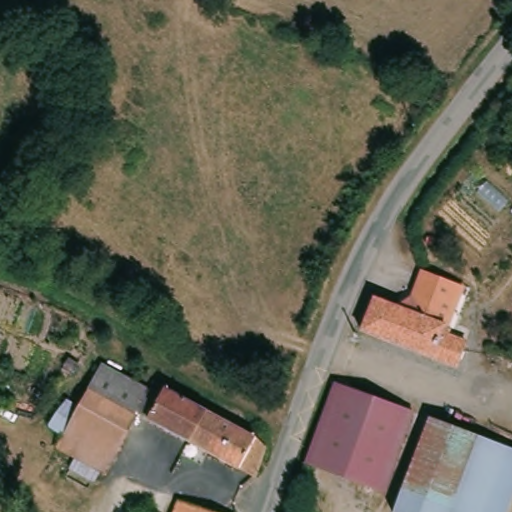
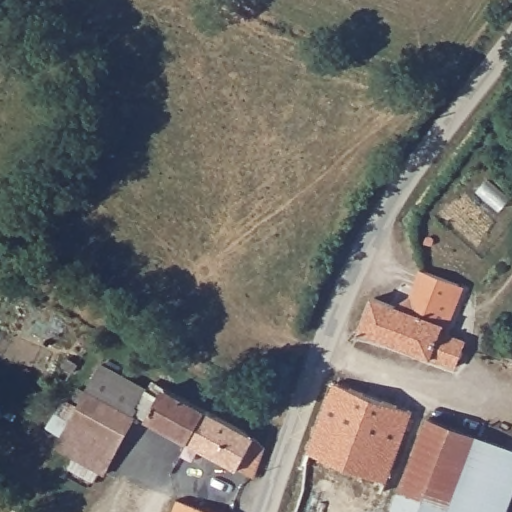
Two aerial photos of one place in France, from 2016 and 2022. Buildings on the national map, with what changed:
unchanged [(407,313),(420,273),(460,286),(453,306),(445,327),(455,330),(451,338),(467,344),(458,369),(360,335),(374,302),(407,313)]
unchanged [(105,362),(150,390),(105,470),(100,469),(93,480),(72,467),(69,465),(75,453),(57,442),(105,362)]
unchanged [(256,436),(253,442),(264,450),(254,480),(194,444),(147,416),(150,412),(143,407),(159,379),(212,410),(251,433),(256,436)]
unchanged [(317,425),(332,383),(411,409),(383,488),(381,492),(305,465),(317,425)]
unchanged [(399,512),(406,490),(430,421),(512,449),(512,492),(505,512),(399,512)]
unchanged [(211,512),(181,512),(186,501),(211,512)]

